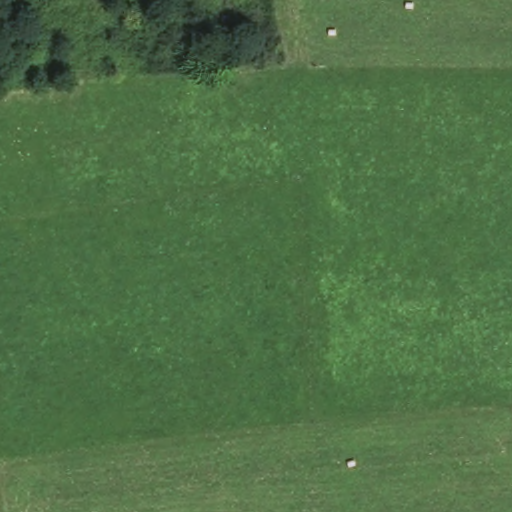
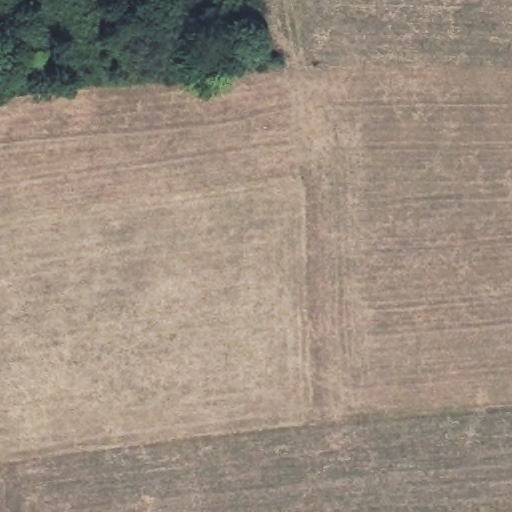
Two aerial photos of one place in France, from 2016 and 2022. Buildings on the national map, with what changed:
[]

